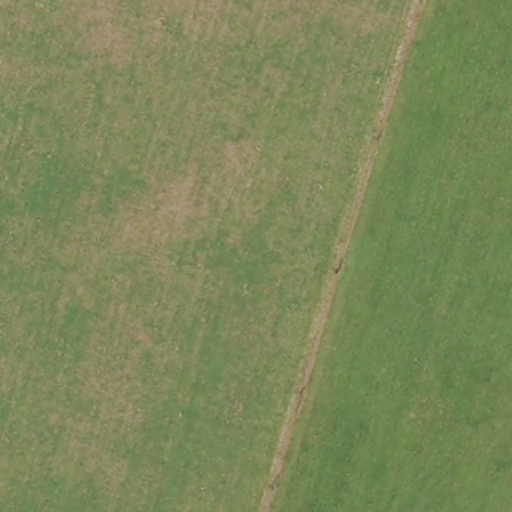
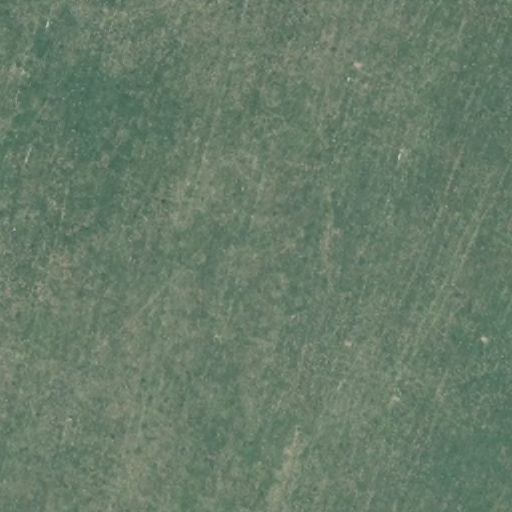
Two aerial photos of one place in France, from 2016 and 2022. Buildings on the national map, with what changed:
[]

